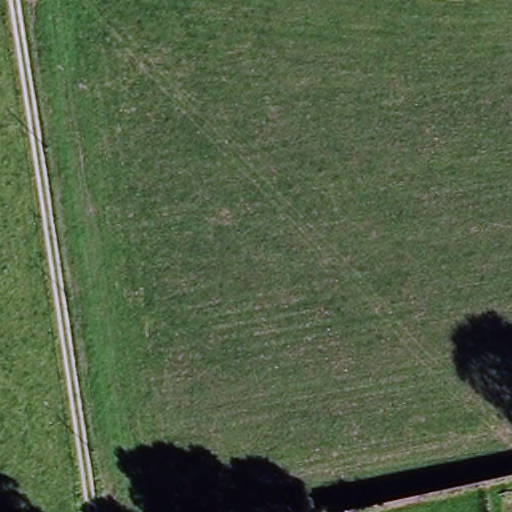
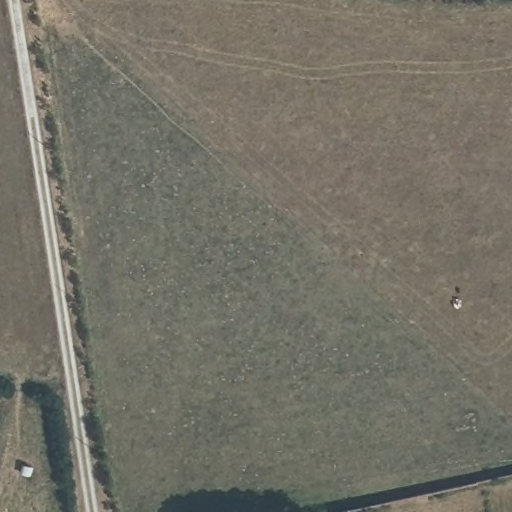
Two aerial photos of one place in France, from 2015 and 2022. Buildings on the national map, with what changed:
unchanged [(346,511),(347,512),(338,512),(346,510),(346,511)]

